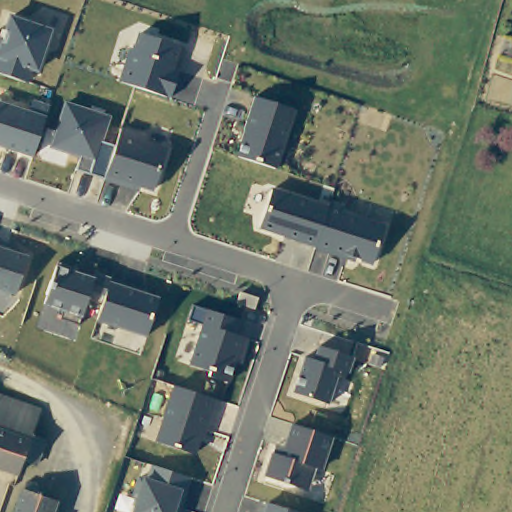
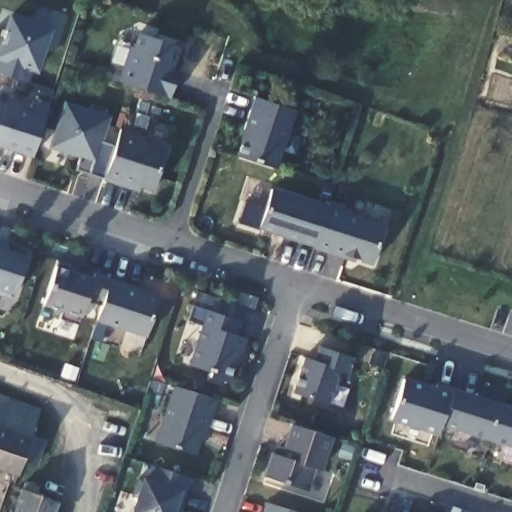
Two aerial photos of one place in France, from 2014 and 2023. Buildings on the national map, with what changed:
unchanged [(31,70),(28,82),(0,73),(0,38),(1,38),(8,16),(53,30),(40,73),(31,70)]
unchanged [(172,71),(180,73),(173,96),(120,80),(128,48),(132,49),(136,34),(180,47),(172,71)]
unchanged [(0,146),(0,101),(29,109),(32,98),(49,104),(32,156),(0,146)]
unchanged [(277,168),(239,156),(256,99),(294,111),(277,168)]
unchanged [(155,193),(76,170),(80,158),(51,148),(65,104),(110,116),(103,142),(118,147),(121,131),(145,138),(143,144),(166,151),(155,193)]
unchanged [(374,266),(262,231),(273,191),(387,226),(374,266)]
unchanged [(0,248),(26,256),(14,296),(0,291),(0,248)]
unchanged [(98,323),(104,306),(87,300),(81,316),(46,305),(59,267),(93,277),(95,273),(111,278),(110,283),(158,296),(146,337),(98,323)]
unchanged [(189,366),(201,325),(188,321),(192,307),(241,319),(237,334),(241,335),(230,378),(189,366)]
unchanged [(339,373),(331,403),(294,393),(305,356),(315,358),(318,348),(353,358),(349,372),(339,373)]
new [(435,388),(437,383),(512,406),(512,448),(441,426),(438,435),(390,420),(405,378),(435,388)]
unchanged [(156,442),(173,387),(213,397),(196,454),(156,442)]
unchanged [(45,438),(35,463),(21,458),(15,473),(0,467),(0,396),(39,410),(31,433),(45,438)]
unchanged [(325,469),(314,468),(307,490),(265,478),(275,444),(286,446),(292,426),(332,436),(325,469)]
unchanged [(148,466),(188,477),(182,488),(174,512),(132,512),(145,478),(148,466)]
unchanged [(56,504),(53,512),(15,512),(22,493),(56,504)]
unchanged [(292,512),(264,512),(266,504),(292,512)]

